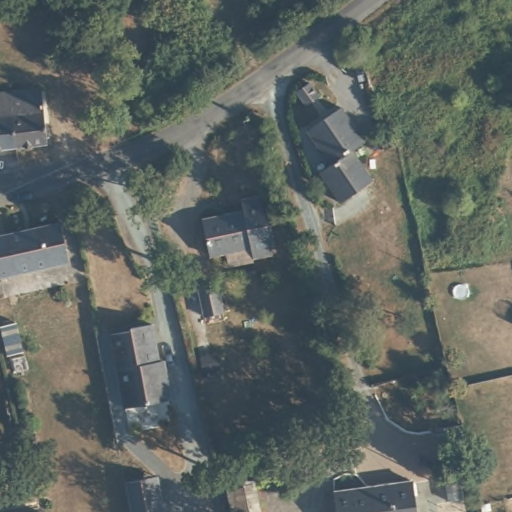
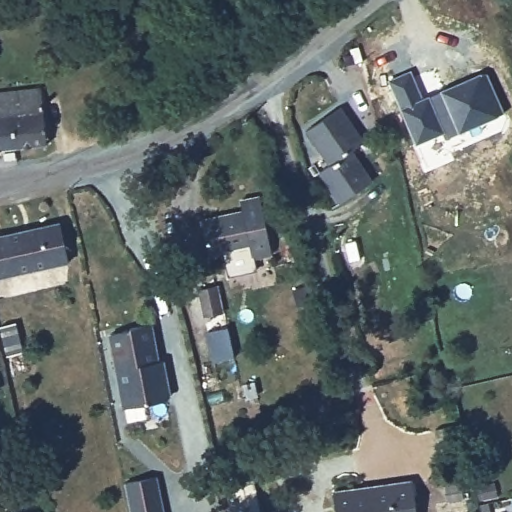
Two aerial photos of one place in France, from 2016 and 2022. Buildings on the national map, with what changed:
new [(411,69),(424,98),(488,71),(505,112),(445,137),(443,133),(417,144),(389,80),(411,69)]
unchanged [(49,137),(25,141),(20,116),(0,121),(0,88),(36,80),(49,137)]
unchanged [(368,139),(355,149),(374,178),(343,200),(322,170),(333,163),(310,129),(345,105),(368,139)]
unchanged [(25,141),(0,147),(0,121),(20,116),(25,141)]
unchanged [(267,248),(248,254),(246,243),(204,254),(195,219),(236,208),(233,197),(252,193),(267,248)]
unchanged [(71,261),(0,278),(0,235),(63,220),(71,261)]
unchanged [(223,313),(206,318),(199,291),(217,286),(223,313)]
unchanged [(0,324),(0,303),(6,301),(9,322),(0,324)]
unchanged [(162,358),(167,358),(174,391),(170,397),(129,406),(114,333),(131,330),(133,326),(154,322),(162,358)]
unchanged [(249,485),(231,488),(227,456),(244,453),(249,485)]
unchanged [(128,482),(159,475),(166,512),(133,512),(129,488),(128,482)]
unchanged [(337,512),(334,492),(419,478),(424,512),(337,512)]
unchanged [(41,512),(35,512),(41,510),(41,512)]

